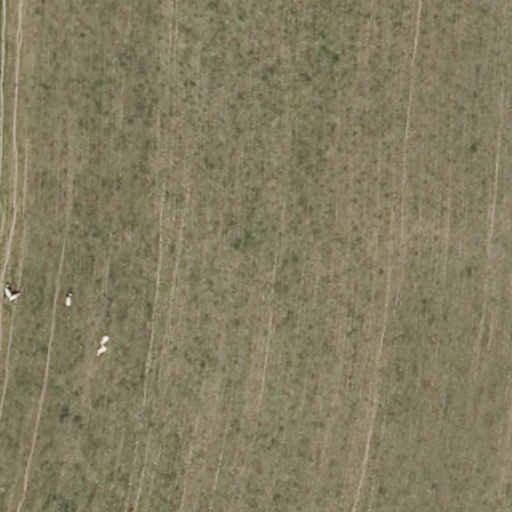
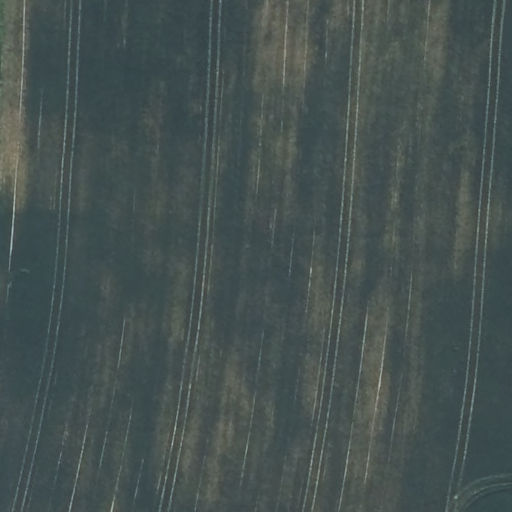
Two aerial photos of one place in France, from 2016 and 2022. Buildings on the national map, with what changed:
[]

